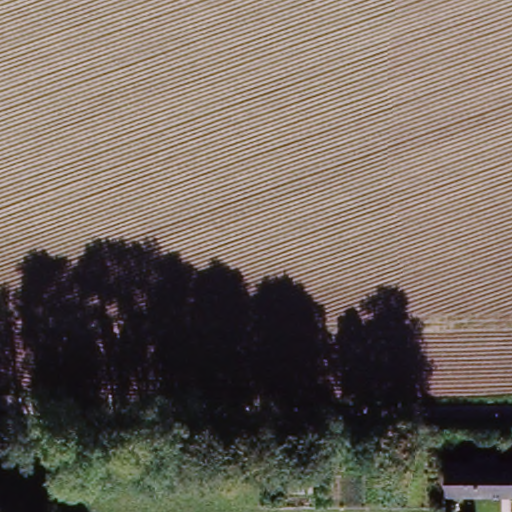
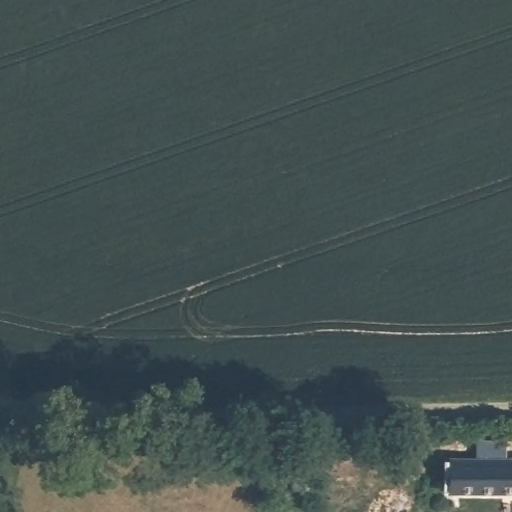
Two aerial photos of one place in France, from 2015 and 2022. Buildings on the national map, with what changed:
unchanged [(447,500),(450,443),(512,446),(512,501),(447,500)]

